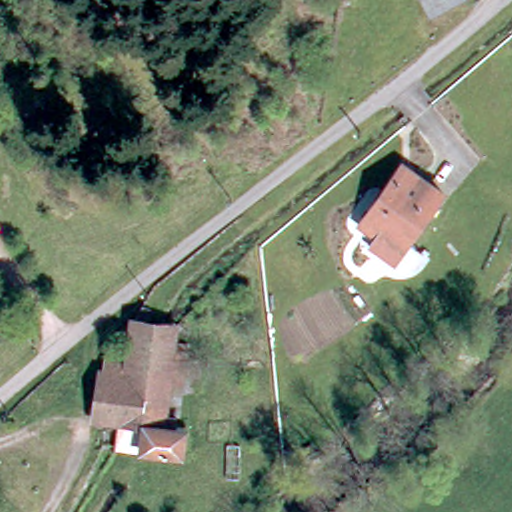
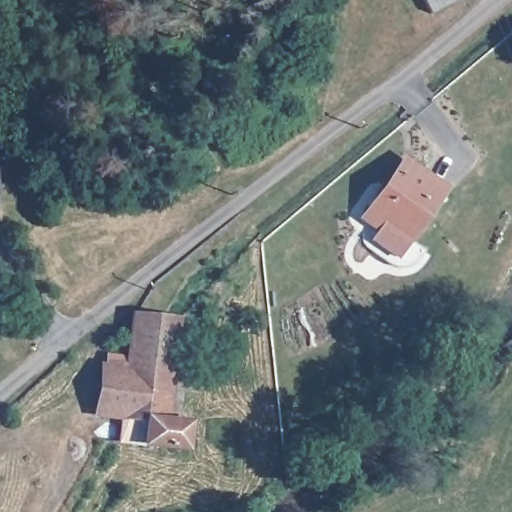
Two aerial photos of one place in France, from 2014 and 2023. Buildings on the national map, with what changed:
unchanged [(390,5),(387,0),(399,0),(390,5)]
unchanged [(432,15),(425,0),(463,0),(432,15)]
unchanged [(414,261),(403,262),(371,241),(383,224),(366,210),(379,192),(384,196),(412,157),(447,183),(411,233),(429,246),(414,261)]
unchanged [(174,332),(173,345),(183,345),(183,346),(183,349),(181,368),(179,388),(169,387),(169,390),(168,395),(166,417),(171,418),(175,418),(174,429),(182,430),(185,430),(185,432),(183,455),(178,454),(156,452),(151,451),(141,450),(116,448),(118,425),(98,422),(102,373),(103,364),(105,365),(105,347),(125,349),(126,330),(127,325),(131,325),(146,327),(149,327),(174,330),(174,332)]

